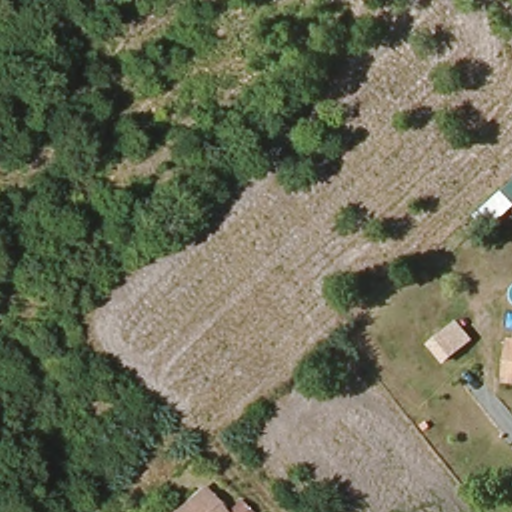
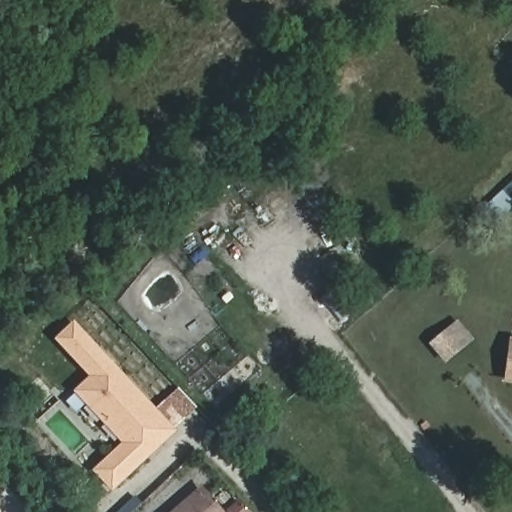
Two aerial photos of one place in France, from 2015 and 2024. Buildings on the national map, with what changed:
new [(121,443),(73,391),(89,375),(54,339),(74,320),(157,408),(179,387),(197,406),(175,429),(177,431),(114,492),(92,471),(121,443)]
new [(460,323),(474,338),(448,362),(433,346),(460,323)]
unchanged [(507,359),(512,359),(512,388),(507,388),(507,359)]
unchanged [(220,509),(222,512),(174,512),(202,487),(220,509)]
new [(141,502),(132,512),(116,512),(135,495),(141,502)]
unchanged [(234,512),(231,508),(239,501),(249,512),(234,512)]

